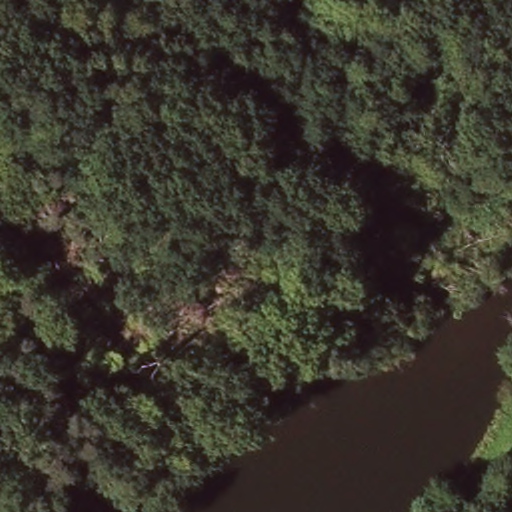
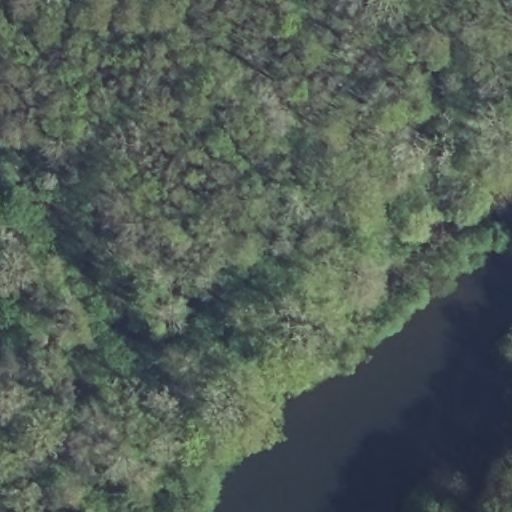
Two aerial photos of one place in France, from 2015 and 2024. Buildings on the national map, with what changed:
[]

